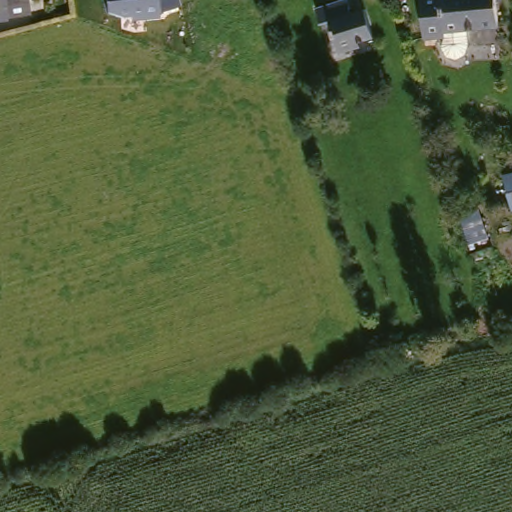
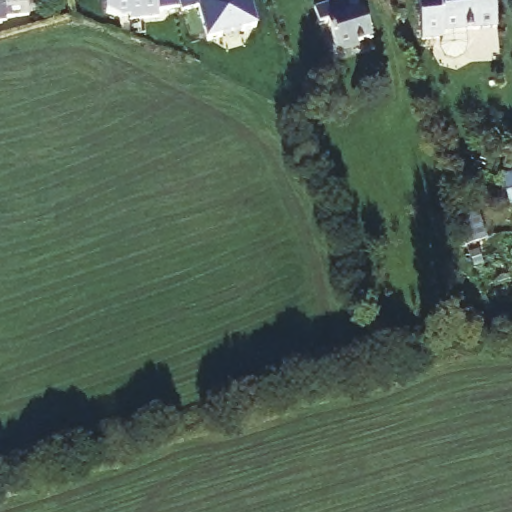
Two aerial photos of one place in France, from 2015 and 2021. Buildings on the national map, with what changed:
unchanged [(5,11),(0,11),(0,0),(21,0),(22,8),(5,11)]
unchanged [(160,15),(130,20),(106,11),(105,0),(181,0),(183,6),(160,15)]
new [(250,0),(258,29),(206,43),(198,6),(184,10),(183,6),(181,0),(250,0)]
unchanged [(461,64),(449,60),(447,52),(448,45),(428,48),(423,4),(442,1),(441,0),(501,0),(504,31),(471,36),(473,49),(469,58),(461,64)]
unchanged [(348,73),(346,66),(337,39),(328,42),(322,24),(358,11),(366,29),(374,26),(383,53),(369,58),(371,66),(348,73)]
unchanged [(512,199),(507,177),(512,175),(512,199)]

